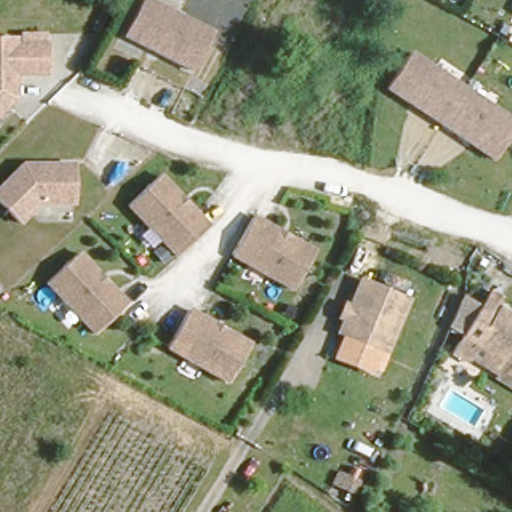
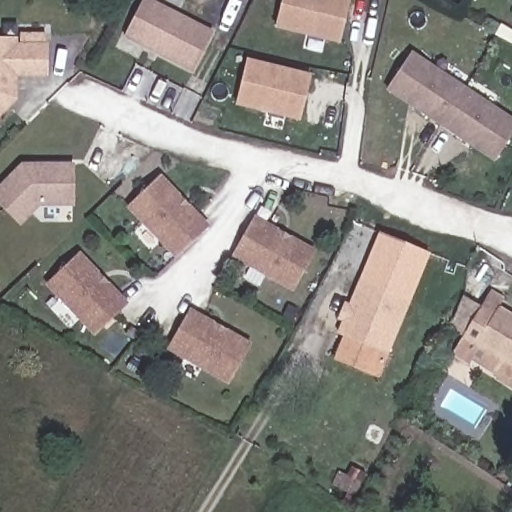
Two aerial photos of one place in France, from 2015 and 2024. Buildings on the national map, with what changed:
unchanged [(148,0),(152,2),(208,30),(189,69),(125,35),(133,20),(143,0),(148,0)]
new [(272,28),(279,0),(349,0),(339,42),(272,28)]
unchanged [(48,45),(49,73),(19,75),(18,97),(0,115),(0,39),(17,39),(17,45),(48,45)]
unchanged [(410,55),(512,118),(512,136),(498,159),(387,91),(410,55)]
new [(301,121),(234,105),(245,60),(312,76),(301,121)]
unchanged [(38,205),(20,226),(0,205),(0,188),(23,164),(71,162),(72,201),(38,205)]
unchanged [(154,175),(192,212),(204,225),(196,233),(174,255),(124,204),(154,175)]
unchanged [(315,251),(296,289),(231,260),(250,222),(315,251)]
new [(378,232),(429,254),(378,377),(333,360),(344,332),(383,349),(407,295),(359,273),(378,232)]
unchanged [(69,258),(74,252),(94,273),(112,291),(124,303),(112,315),(94,333),(44,282),(69,258)]
unchanged [(353,290),(359,273),(407,295),(383,349),(335,328),(343,310),(338,308),(342,298),(351,302),(356,291),(353,290)]
unchanged [(446,348),(457,330),(444,323),(459,288),(475,302),(485,285),(499,295),(494,304),(512,315),(512,389),(491,375),(493,371),(467,355),(464,358),(446,348)]
unchanged [(203,317),(252,340),(233,379),(169,348),(187,310),(203,317)]

